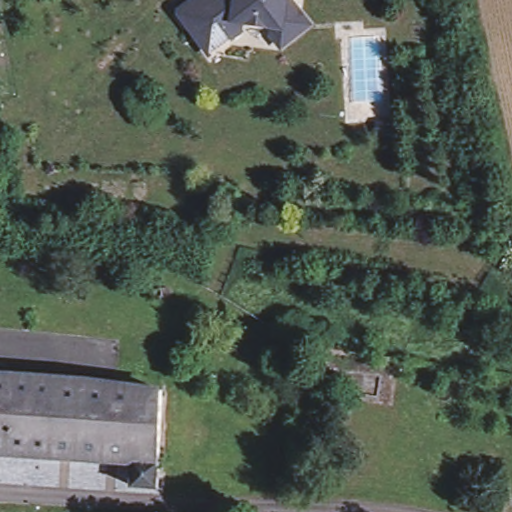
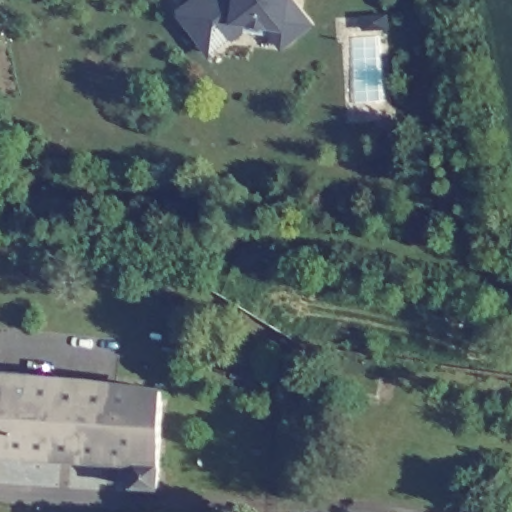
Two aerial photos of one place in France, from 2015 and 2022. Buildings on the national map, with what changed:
unchanged [(205,0),(206,0),(292,0),(308,22),(282,43),(272,31),(275,25),(244,20),(243,28),(211,50),(198,33),(180,8),(192,0),(205,0)]
unchanged [(0,456),(0,372),(58,378),(51,461),(0,456)]
unchanged [(134,488),(135,467),(51,461),(58,378),(162,393),(159,469),(158,491),(134,488)]

